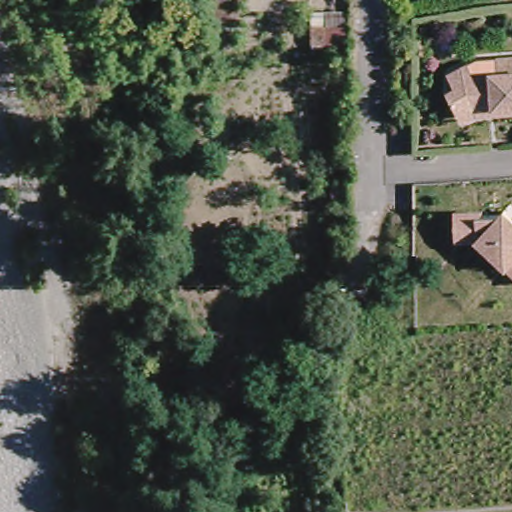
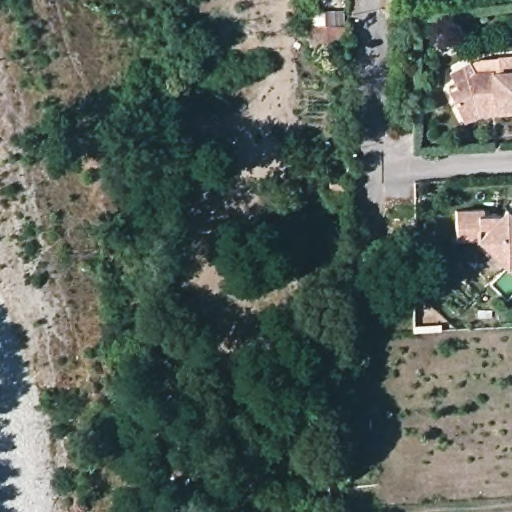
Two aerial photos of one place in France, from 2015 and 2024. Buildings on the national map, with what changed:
unchanged [(310,16),(345,15),(345,58),(310,59),(310,16)]
unchanged [(488,118),(487,111),(468,113),(451,119),(442,93),(451,90),(446,75),(467,68),(471,78),(487,77),(486,64),(512,62),(512,116),(488,118)]
unchanged [(330,209),(330,189),(345,188),(347,207),(330,209)]
unchanged [(507,267),(504,269),(475,239),(455,241),(455,202),(490,200),(492,209),(510,208),(512,211),(512,271),(507,267)]

